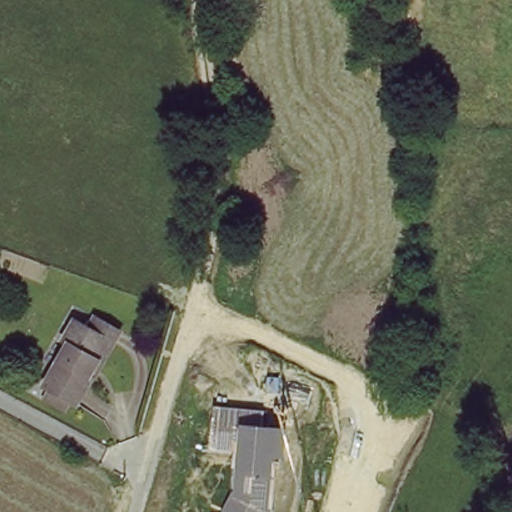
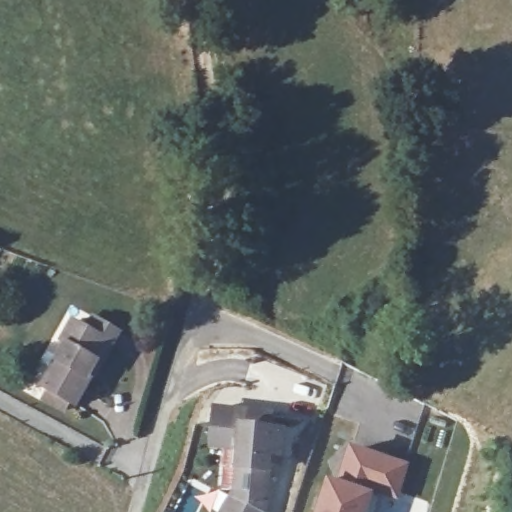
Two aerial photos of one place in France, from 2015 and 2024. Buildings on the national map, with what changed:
unchanged [(45,401),(51,389),(45,386),(70,345),(64,342),(77,320),(91,328),(97,317),(121,331),(96,375),(91,372),(75,401),(67,397),(61,409),(45,401)]
unchanged [(234,493),(235,452),(209,449),(212,407),(266,412),(265,425),(285,427),(282,460),(275,460),(269,512),(224,512),(234,493)]
new [(396,457),(386,487),(362,480),(351,512),(306,512),(319,472),(330,476),(342,438),(396,457)]

